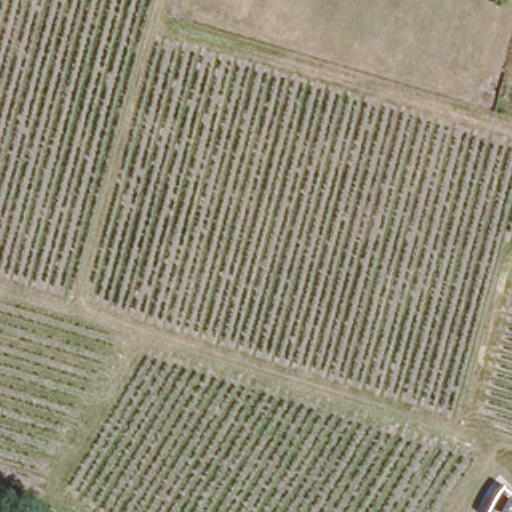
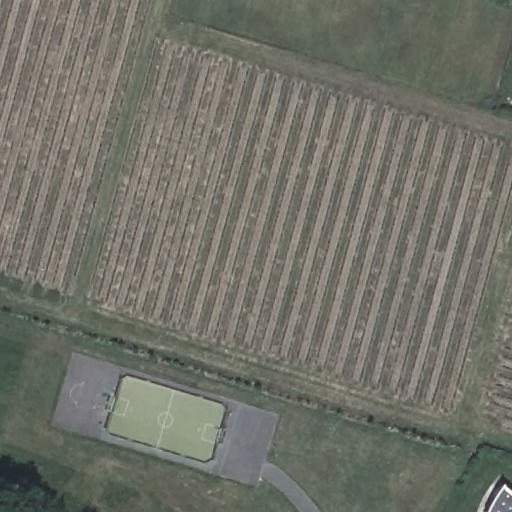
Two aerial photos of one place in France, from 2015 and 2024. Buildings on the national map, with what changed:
unchanged [(512,512),(483,512),(487,502),(494,490),(501,486),(512,495),(512,512)]

